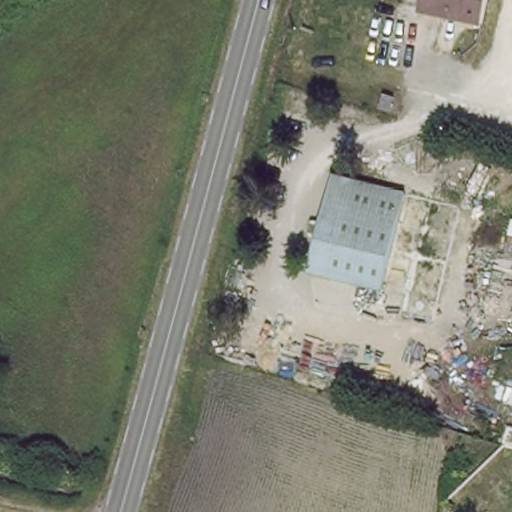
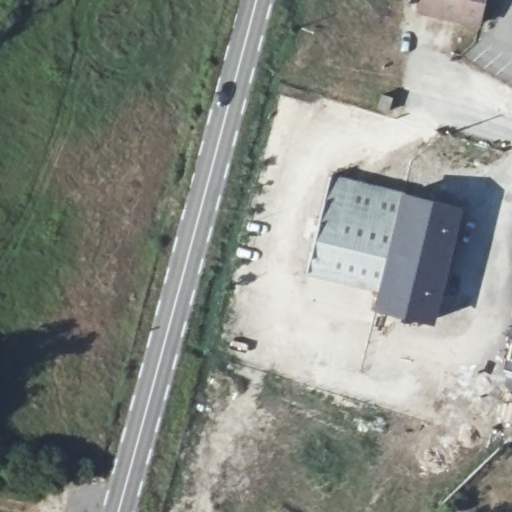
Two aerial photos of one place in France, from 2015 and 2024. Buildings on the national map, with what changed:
unchanged [(423,0),(487,0),(482,24),(420,10),(423,0)]
unchanged [(402,96),(393,92),(394,84),(406,86),(406,90),(405,94),(402,96)]
unchanged [(318,275),(340,179),(417,195),(394,291),(318,275)]
new [(461,206),(434,323),(373,309),(379,288),(394,291),(417,195),(461,206)]

